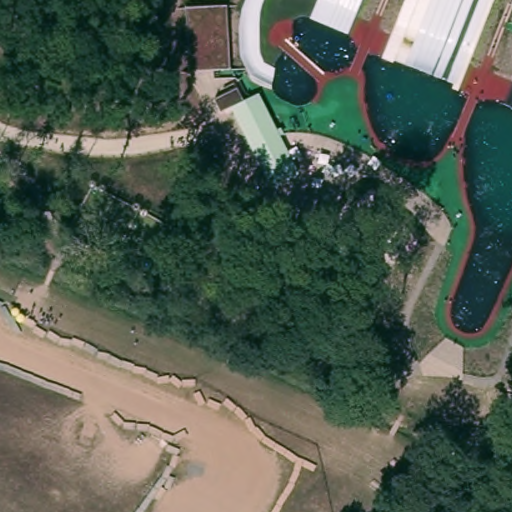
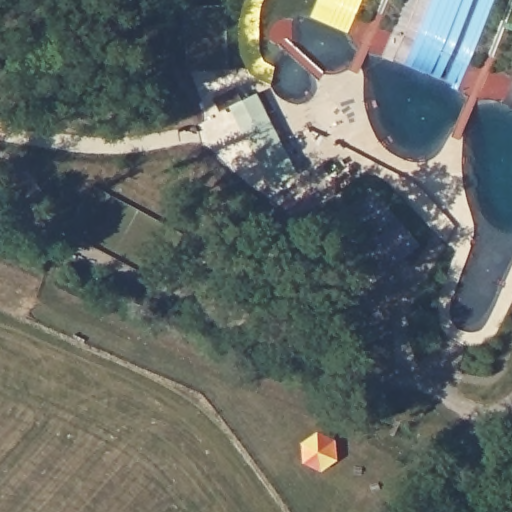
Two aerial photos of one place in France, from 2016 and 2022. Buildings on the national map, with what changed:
unchanged [(185,7),(228,6),(231,66),(189,70),(185,7)]
unchanged [(214,99),(237,87),(244,100),(259,95),(298,175),(272,189),(233,107),(221,111),(214,99)]

